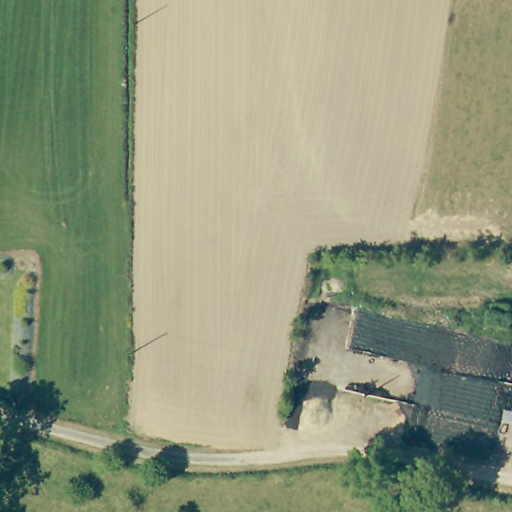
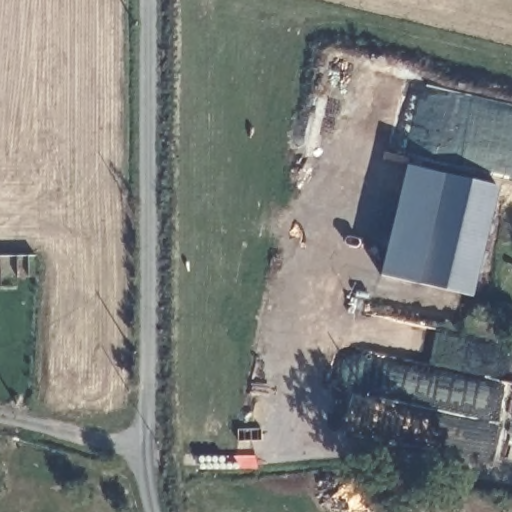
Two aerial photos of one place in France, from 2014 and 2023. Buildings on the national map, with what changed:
new [(474,298),(381,277),(407,165),(500,187),(474,298)]

